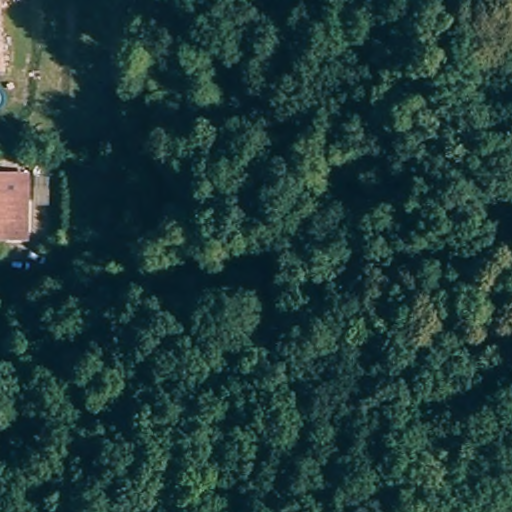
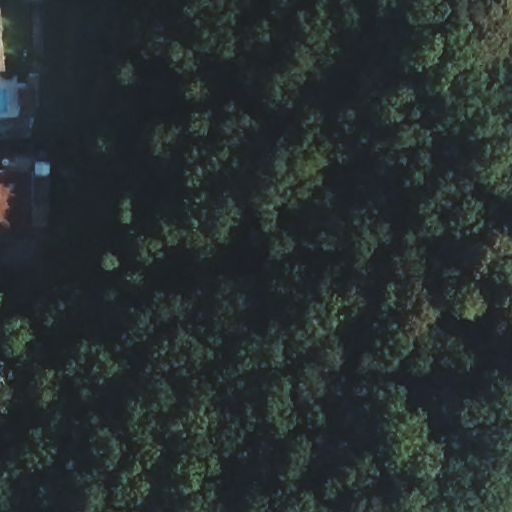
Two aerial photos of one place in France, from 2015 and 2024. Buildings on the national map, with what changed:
unchanged [(10,72),(0,72),(0,0),(5,0),(10,72)]
unchanged [(20,233),(0,233),(0,173),(31,172),(31,224),(31,232),(20,233)]

